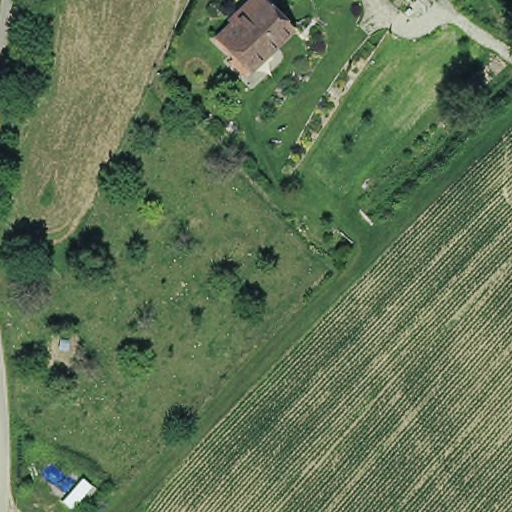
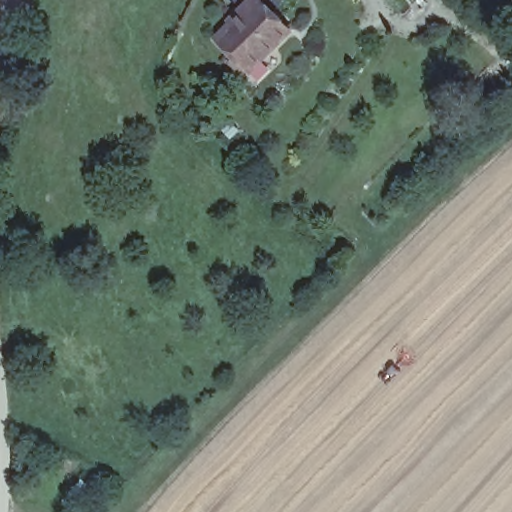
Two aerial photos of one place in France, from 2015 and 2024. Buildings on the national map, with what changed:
unchanged [(255,0),(263,0),(291,28),(262,57),(261,58),(249,47),(237,58),(234,56),(217,38),(255,0)]

